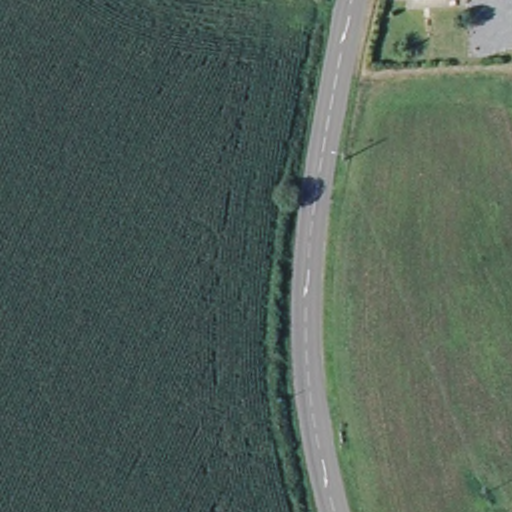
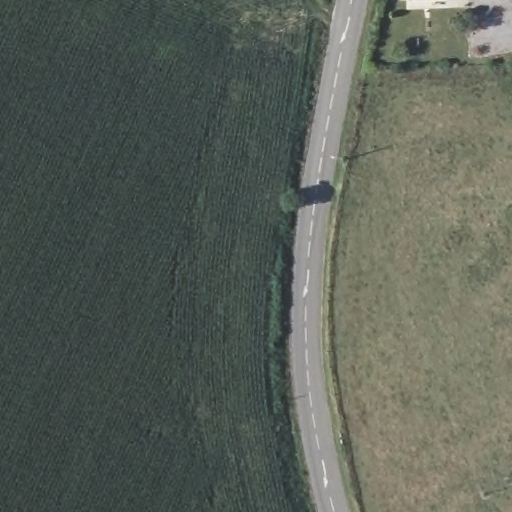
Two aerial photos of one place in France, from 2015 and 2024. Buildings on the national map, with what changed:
unchanged [(455,0),(438,0),(397,2),(397,0),(455,0)]

